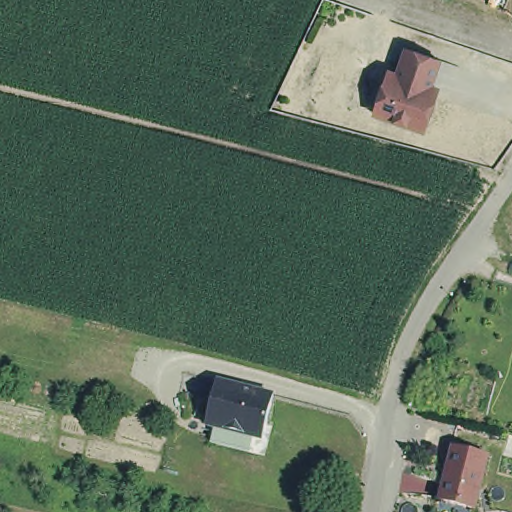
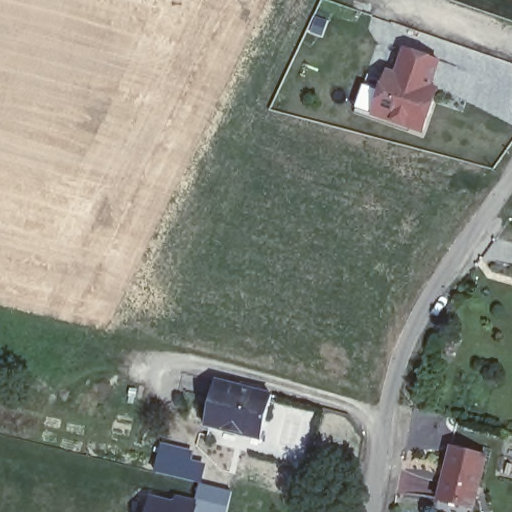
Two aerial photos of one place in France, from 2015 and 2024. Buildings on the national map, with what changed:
unchanged [(442,63),(434,89),(441,91),(427,135),(374,117),(389,71),(394,73),(404,50),(442,63)]
unchanged [(220,379),(276,392),(266,429),(264,436),(209,422),(211,415),(220,379)]
new [(154,472),(163,442),(196,451),(193,459),(206,464),(201,483),(154,472)]
unchanged [(436,497),(442,476),(449,445),(484,455),(476,485),(469,506),(436,497)]
new [(195,512),(197,500),(201,483),(233,492),(228,512),(195,512)]
new [(174,501),(176,495),(197,500),(195,512),(147,512),(151,495),(174,501)]

